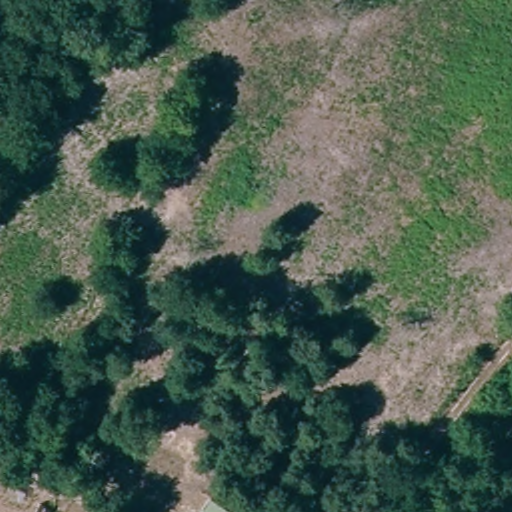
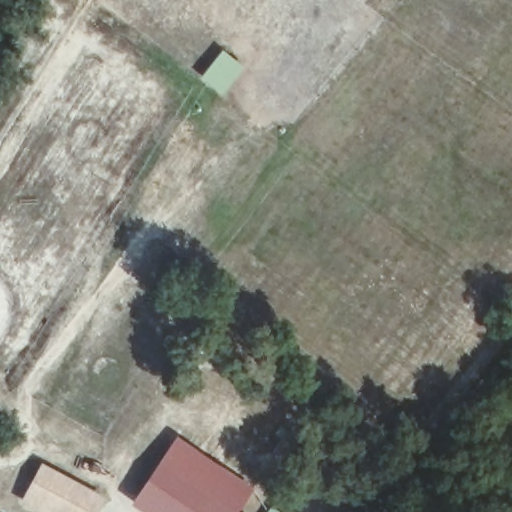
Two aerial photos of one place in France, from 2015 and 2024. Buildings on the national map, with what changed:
new [(255,487),(239,511),(239,512),(143,512),(131,504),(177,435),(255,487)]
new [(32,480),(42,461),(103,493),(93,512),(89,512),(32,480)]
new [(22,500),(32,480),(89,512),(43,512),(22,500)]
demolished [(207,491),(236,512),(193,512),(207,491)]
new [(270,506),(280,512),(267,512),(270,506)]

